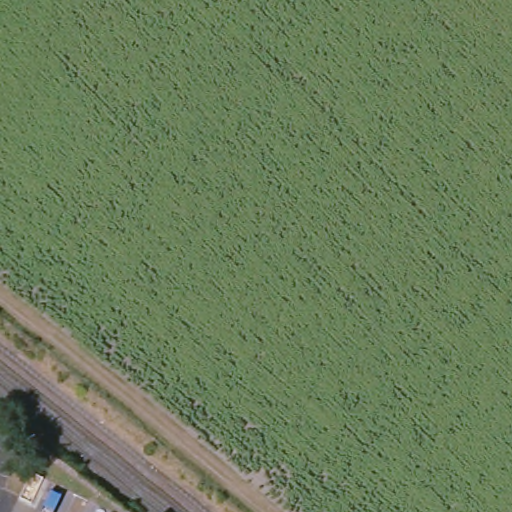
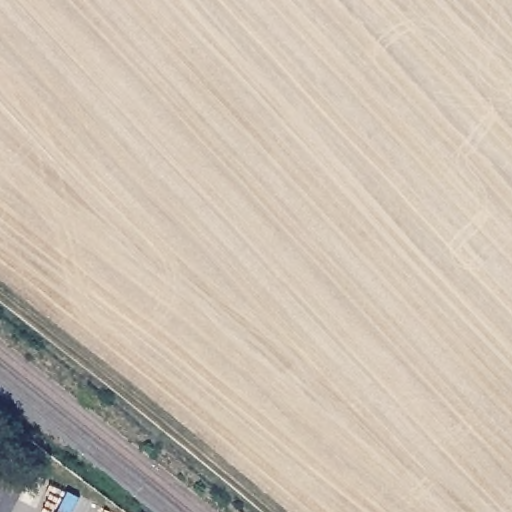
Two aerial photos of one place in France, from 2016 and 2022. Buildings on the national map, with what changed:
[]

